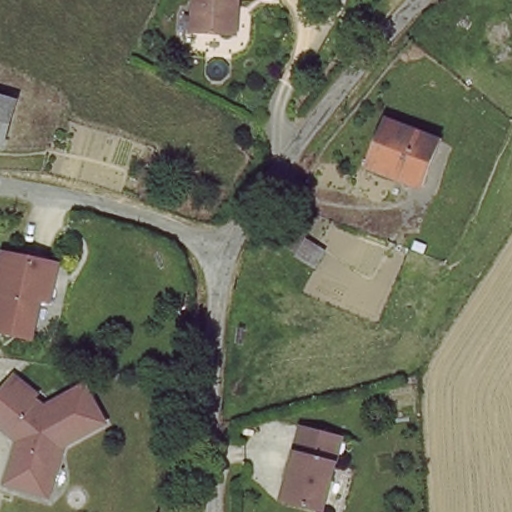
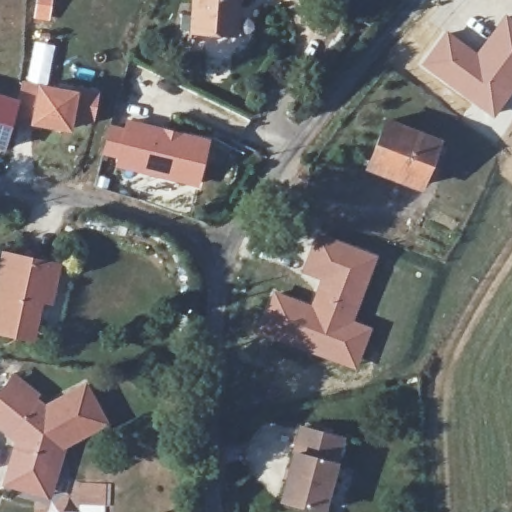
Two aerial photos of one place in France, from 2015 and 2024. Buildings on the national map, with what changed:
unchanged [(196,0),(239,0),(238,12),(233,12),(231,37),(193,35),(196,0)]
new [(475,51),(505,14),(512,19),(512,93),(493,119),(418,65),(445,29),(475,51)]
new [(100,89),(93,126),(74,124),(72,132),(28,125),(35,82),(79,88),(100,89)]
unchanged [(16,97),(3,148),(0,147),(0,92),(16,97)]
new [(124,128),(126,118),(210,140),(197,187),(113,167),(115,157),(101,154),(110,124),(124,128)]
unchanged [(387,130),(436,151),(418,191),(368,170),(387,130)]
unchanged [(310,214),(294,237),(276,225),(291,202),(310,214)]
new [(270,287),(310,303),(317,280),(298,273),(314,231),(378,254),(355,319),(372,326),(355,370),(251,335),(270,287)]
unchanged [(13,337),(0,333),(0,284),(7,256),(62,268),(53,305),(43,302),(35,331),(33,342),(13,337)]
unchanged [(33,487),(0,476),(0,475),(14,435),(0,421),(0,384),(11,372),(42,402),(83,381),(100,413),(103,420),(83,428),(58,441),(43,491),(33,487)]
unchanged [(302,425),(345,435),(327,508),(284,497),(302,425)]

